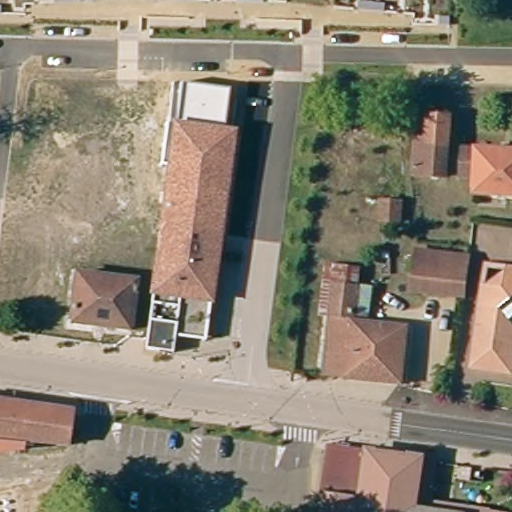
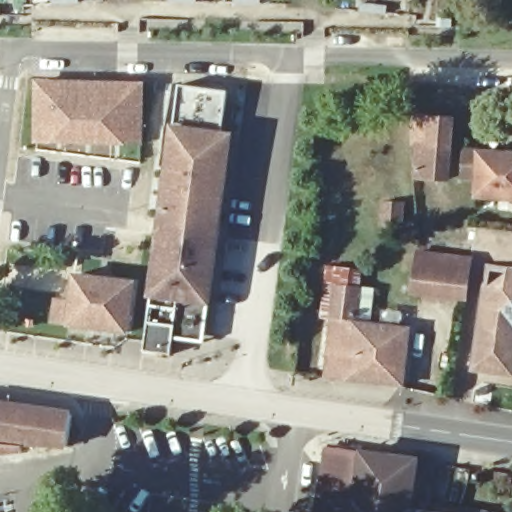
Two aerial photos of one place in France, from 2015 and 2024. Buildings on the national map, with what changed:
new [(34,80),(146,83),(144,147),(126,146),(51,145),(32,145),(34,80)]
unchanged [(170,122),(176,124),(180,85),(228,91),(224,129),(235,131),(217,234),(159,227),(170,122)]
unchanged [(439,142),(439,119),(458,120),(458,129),(455,179),(425,177),(426,143),(439,142)]
unchanged [(512,154),(512,198),(475,196),(476,178),(462,177),(463,152),(512,154)]
demolished [(114,171),(111,200),(91,196),(95,169),(114,171)]
unchanged [(413,204),(412,223),(394,222),(395,204),(413,204)]
demolished [(44,219),(42,231),(78,234),(74,266),(40,261),(38,276),(12,272),(19,215),(44,219)]
unchanged [(217,234),(203,340),(173,335),(170,353),(145,350),(159,227),(217,234)]
unchanged [(419,295),(424,258),(470,263),(466,299),(419,295)]
unchanged [(484,296),(512,276),(512,371),(511,375),(473,368),(484,296)]
unchanged [(133,285),(128,335),(66,326),(74,278),(133,285)]
unchanged [(326,378),(323,378),(325,346),(322,346),(330,288),(352,290),(349,321),(402,326),(396,384),(385,382),(326,378)]
unchanged [(58,437),(14,433),(15,441),(0,442),(0,399),(61,407),(58,437)]
unchanged [(315,497),(318,469),(321,446),(335,448),(359,451),(355,481),(352,512),(318,512),(319,498),(315,497)]
unchanged [(404,512),(352,512),(355,481),(359,451),(410,458),(407,488),(404,512)]
unchanged [(410,458),(430,461),(426,502),(456,507),(483,512),(404,512),(407,488),(410,458)]

